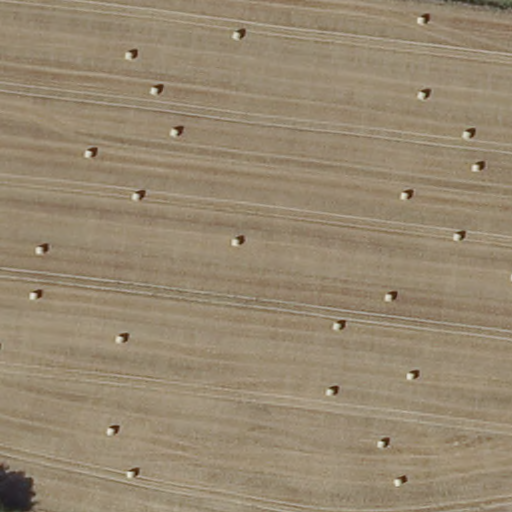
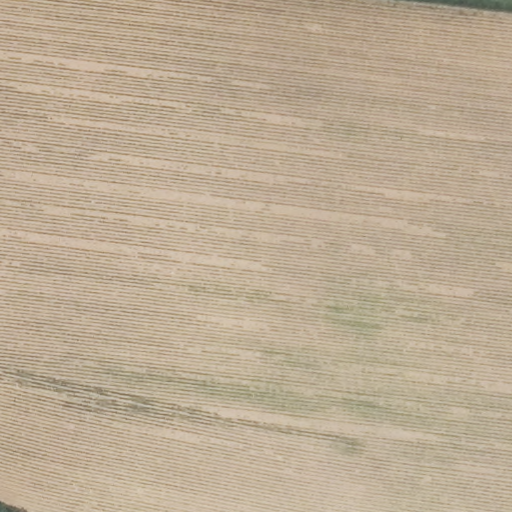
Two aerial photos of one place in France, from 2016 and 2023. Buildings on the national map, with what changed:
[]

